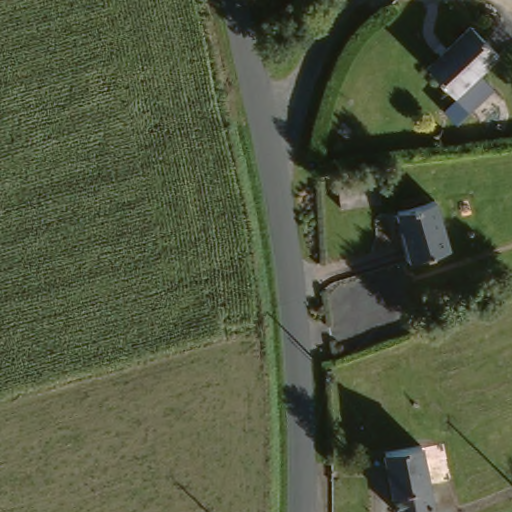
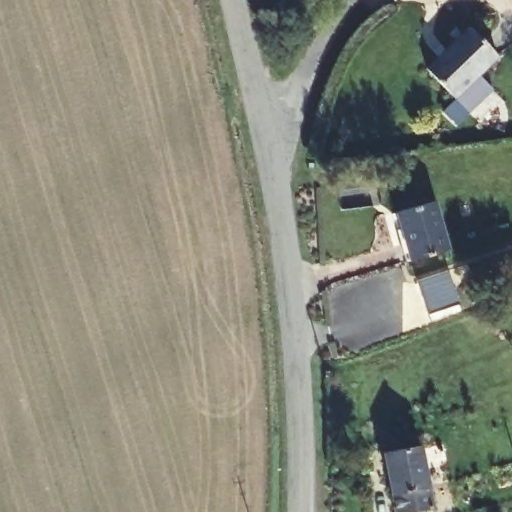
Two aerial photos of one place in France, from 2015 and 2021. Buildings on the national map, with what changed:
unchanged [(467,24),(495,51),(476,70),(490,89),(465,109),(422,68),(467,24)]
unchanged [(441,247),(404,256),(391,210),(431,198),(441,247)]
new [(450,270),(461,305),(428,315),(417,280),(450,270)]
unchanged [(414,512),(394,512),(385,453),(422,446),(433,507),(414,512)]

